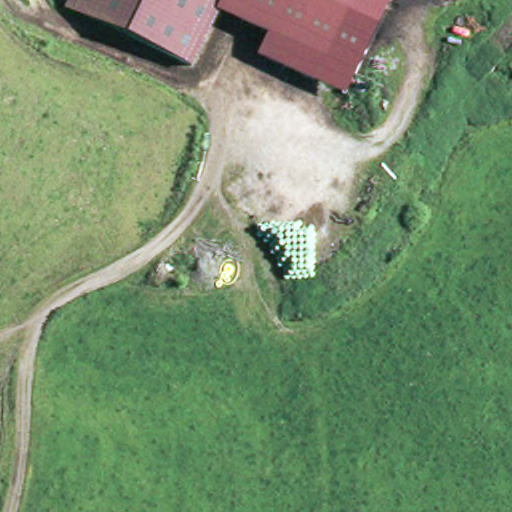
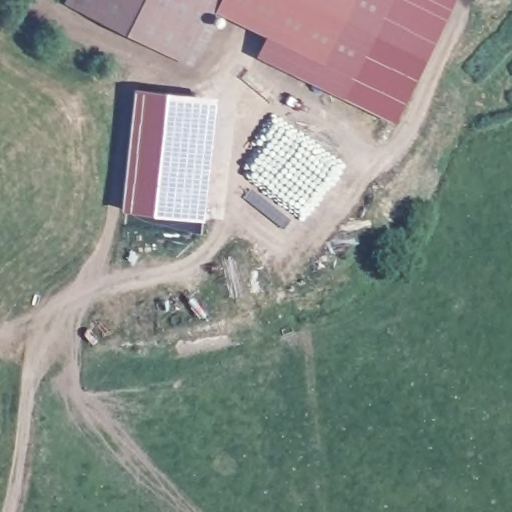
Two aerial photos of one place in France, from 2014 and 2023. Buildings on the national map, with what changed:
unchanged [(65,0),(393,0),(381,31),(345,95),(255,53),(267,35),(215,12),(194,65),(65,0)]
new [(397,120),(345,95),(381,31),(393,0),(455,0),(397,120)]
new [(217,97),(206,219),(123,211),(136,89),(217,97)]

